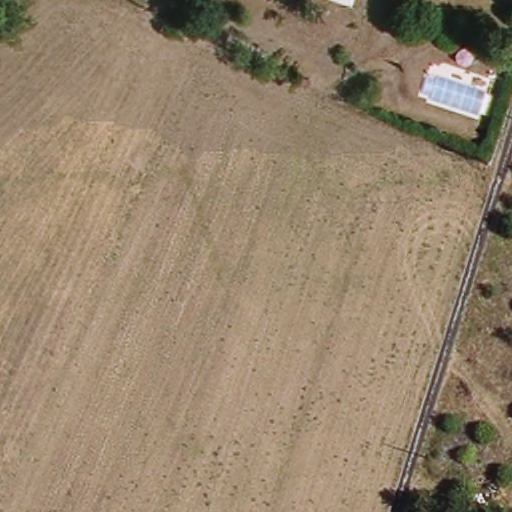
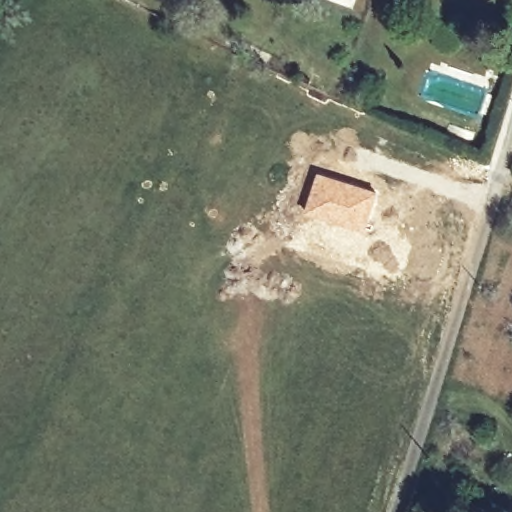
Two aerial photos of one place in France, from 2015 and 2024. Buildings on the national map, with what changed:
demolished [(287,90),(292,81),(301,85),(296,95),(287,90)]
new [(317,172),(378,192),(364,234),(303,213),(317,172)]

